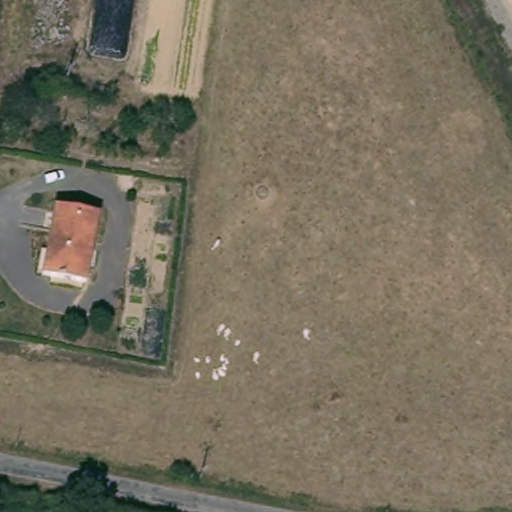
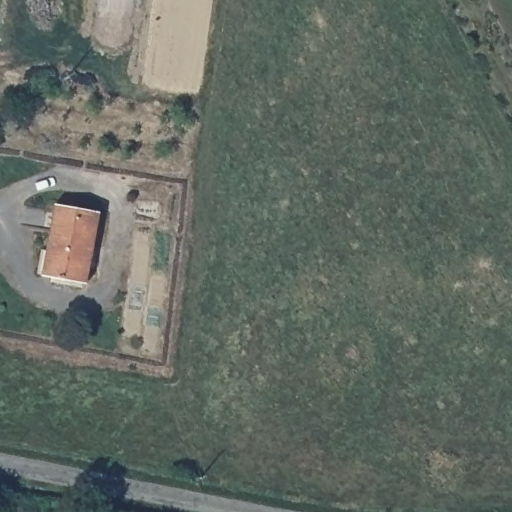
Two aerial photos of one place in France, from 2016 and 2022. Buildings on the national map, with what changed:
unchanged [(101,212),(85,285),(36,275),(51,202),(101,212)]

